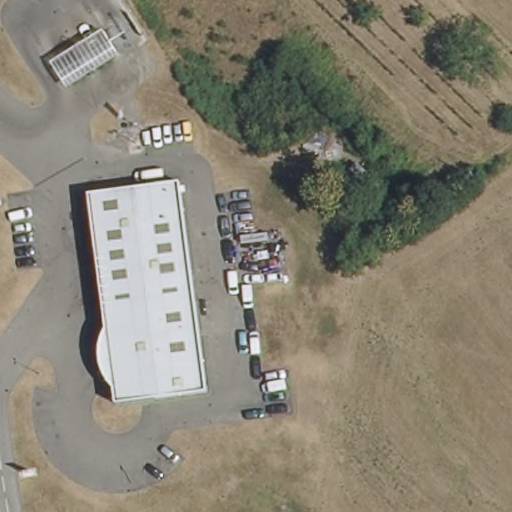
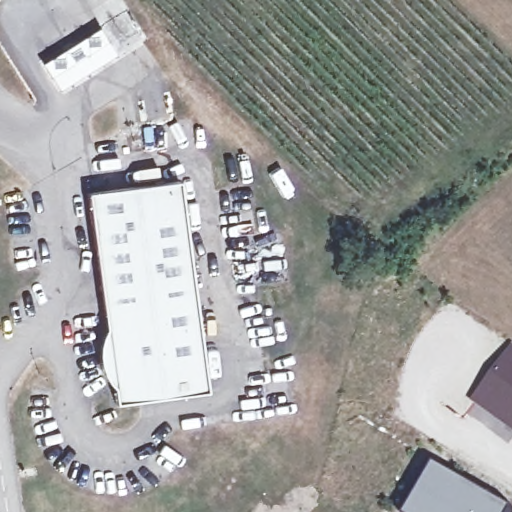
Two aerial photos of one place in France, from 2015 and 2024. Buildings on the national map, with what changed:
unchanged [(118,52),(64,86),(48,60),(104,26),(118,52)]
unchanged [(357,161),(380,184),(368,197),(344,174),(357,161)]
unchanged [(100,340),(104,331),(87,196),(96,195),(179,184),(193,295),(206,393),(114,406),(112,391),(105,384),(102,376),(99,367),(98,357),(98,348),(100,340)]
new [(472,401),(512,345),(512,430),(472,401)]
new [(415,512),(441,467),(512,508),(512,512),(415,512)]

